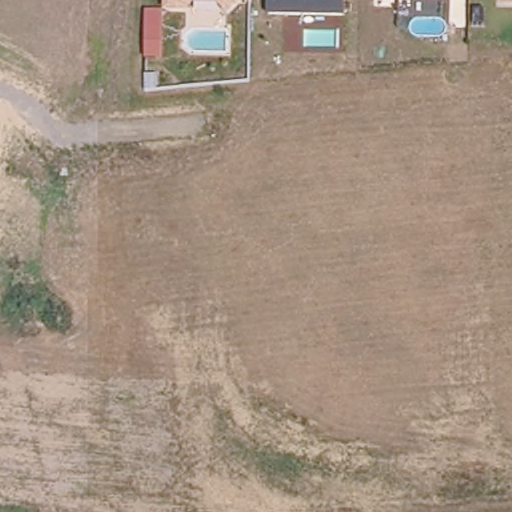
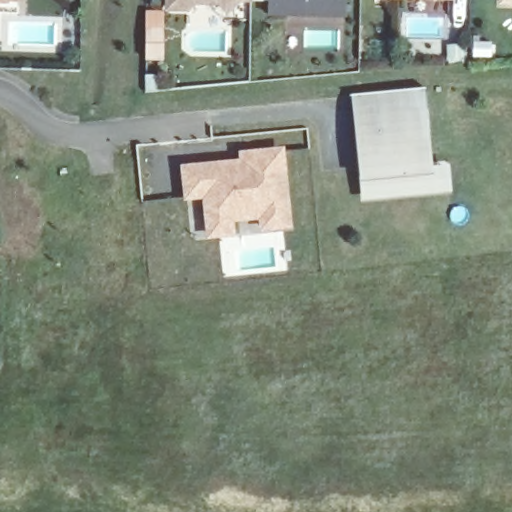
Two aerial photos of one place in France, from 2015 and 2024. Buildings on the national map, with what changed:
new [(17,1),(7,0),(7,2),(0,1),(0,0),(18,0),(17,1)]
unchanged [(251,4),(240,5),(229,15),(222,15),(218,6),(197,7),(190,13),(165,13),(165,0),(252,0),(251,4)]
unchanged [(271,0),(347,0),(346,16),(316,15),(271,14),(271,0)]
unchanged [(498,5),(498,0),(512,0),(512,5),(498,5)]
unchanged [(164,12),(163,63),(145,63),(146,11),(164,12)]
new [(433,167),(450,166),(452,194),(361,204),(359,182),(349,97),(424,90),(433,167)]
new [(211,236),(210,222),(207,196),(189,198),(186,170),(225,166),(245,164),(245,156),(282,152),(290,226),(265,229),(264,217),(231,220),(233,234),(211,236)]

